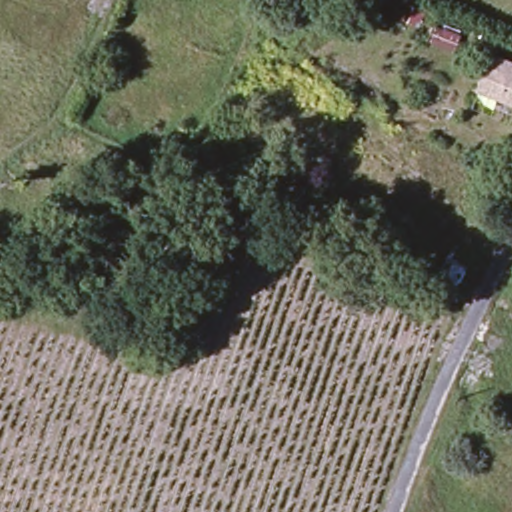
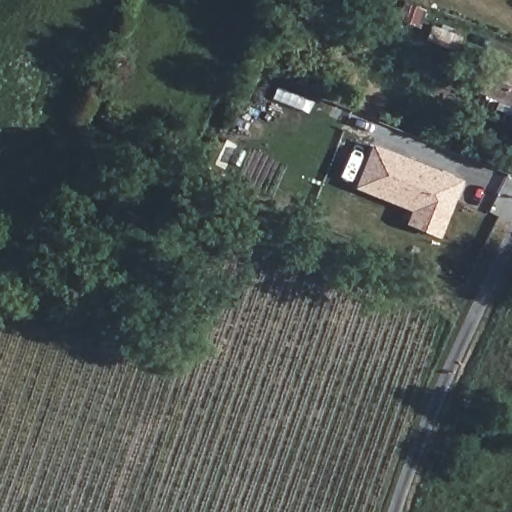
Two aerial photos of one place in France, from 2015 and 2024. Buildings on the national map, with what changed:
unchanged [(417,23),(398,14),(404,0),(423,9),(417,23)]
unchanged [(452,50),(425,38),(431,25),(458,37),(452,50)]
unchanged [(512,68),(512,107),(476,91),(488,63),(491,58),(512,68)]
new [(372,145),(464,181),(439,238),(403,225),(409,212),(352,188),(372,145)]
unchanged [(501,309),(506,299),(512,302),(512,312),(511,314),(501,309)]

